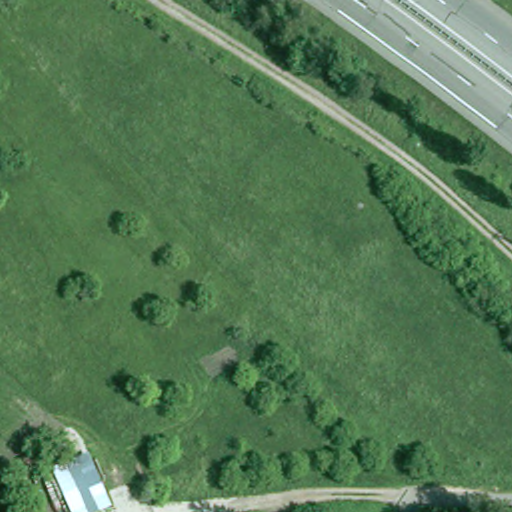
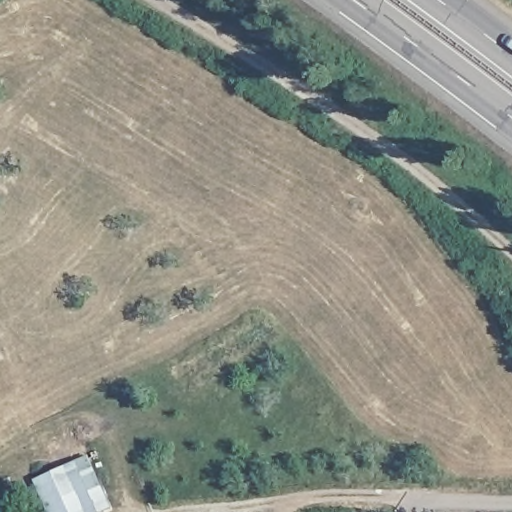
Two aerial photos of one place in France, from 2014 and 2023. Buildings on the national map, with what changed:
new [(102,512),(47,512),(33,482),(89,455),(113,507),(102,512)]

